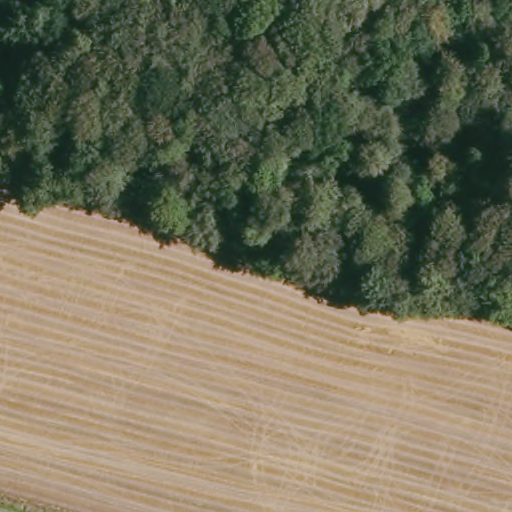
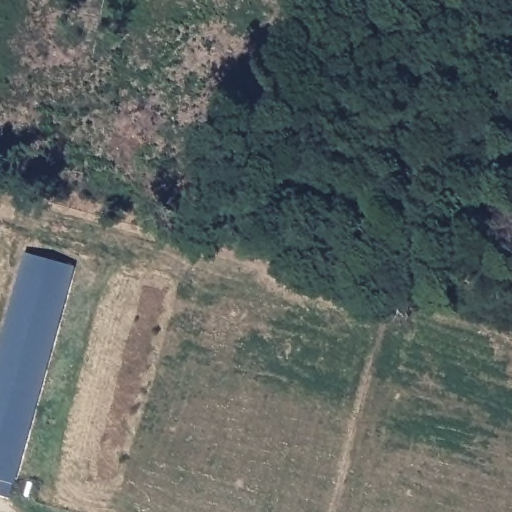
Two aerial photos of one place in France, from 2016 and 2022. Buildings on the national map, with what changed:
new [(0,478),(0,347),(26,253),(73,267),(13,482),(0,478)]

